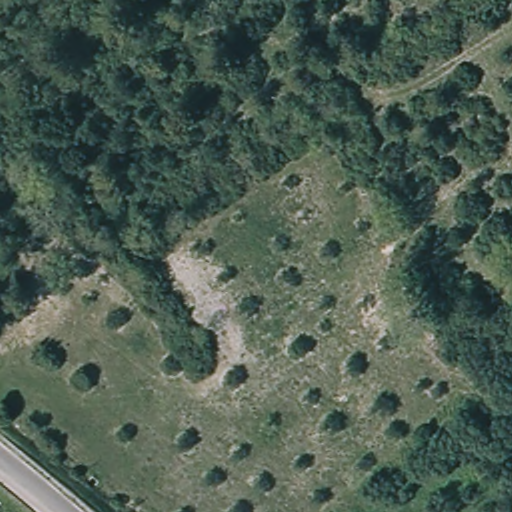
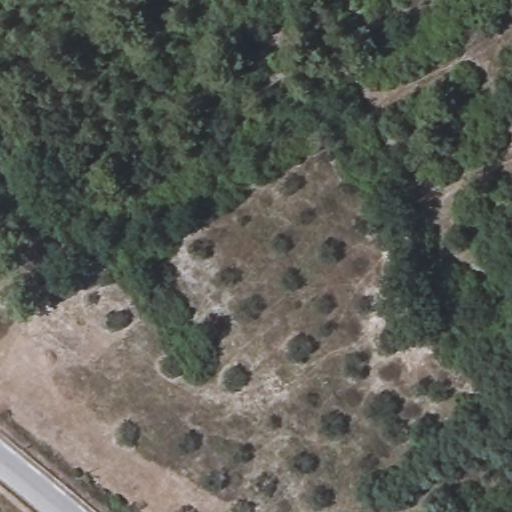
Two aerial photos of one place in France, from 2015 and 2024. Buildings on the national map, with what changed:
[]

